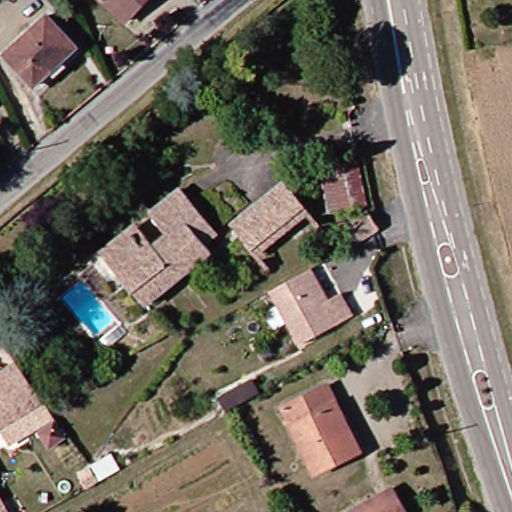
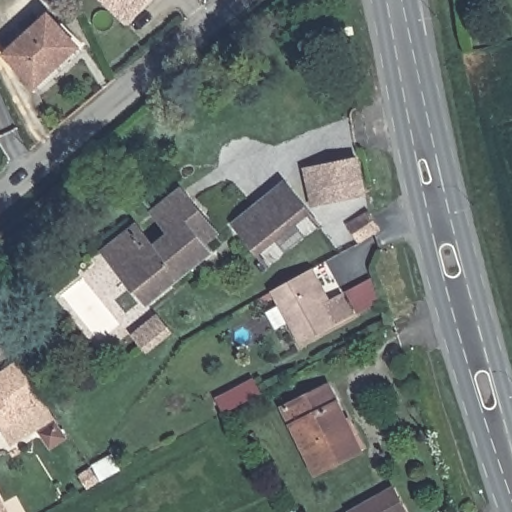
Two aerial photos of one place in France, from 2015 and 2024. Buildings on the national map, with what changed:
unchanged [(128,21),(106,0),(147,0),(128,21)]
unchanged [(3,58),(45,18),(75,50),(32,89),(3,58)]
unchanged [(363,200),(327,208),(317,163),(354,156),(363,200)]
unchanged [(305,216),(253,258),(230,229),(281,186),(305,216)]
unchanged [(209,251),(142,305),(99,252),(128,228),(146,250),(166,233),(149,212),(171,193),(177,188),(195,210),(212,232),(207,237),(201,242),(209,251)]
unchanged [(354,236),(343,219),(365,206),(376,224),(354,236)]
unchanged [(321,282),(331,300),(326,303),(337,323),(302,343),(272,290),(313,267),(321,282)]
unchanged [(10,448),(3,435),(1,436),(0,434),(0,397),(1,396),(0,394),(0,381),(20,369),(47,409),(45,410),(53,423),(10,448)]
unchanged [(355,454),(317,473),(284,406),(328,384),(345,418),(362,451),(355,454)]
unchanged [(95,467),(113,457),(120,470),(116,472),(103,480),(95,467)]
unchanged [(90,467),(99,478),(90,486),(80,475),(90,467)]
unchanged [(401,512),(355,512),(390,492),(401,512)]
unchanged [(0,512),(0,496),(9,512),(0,512)]

